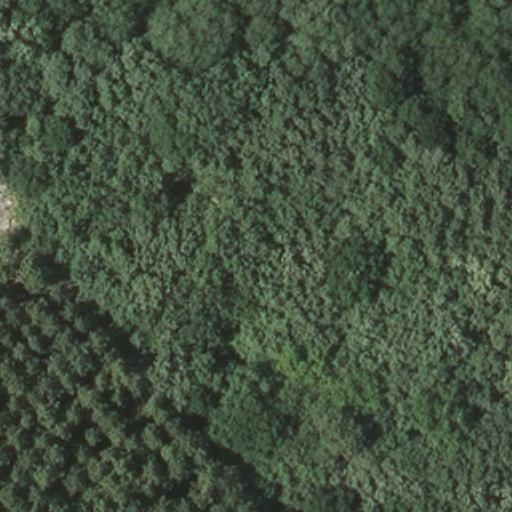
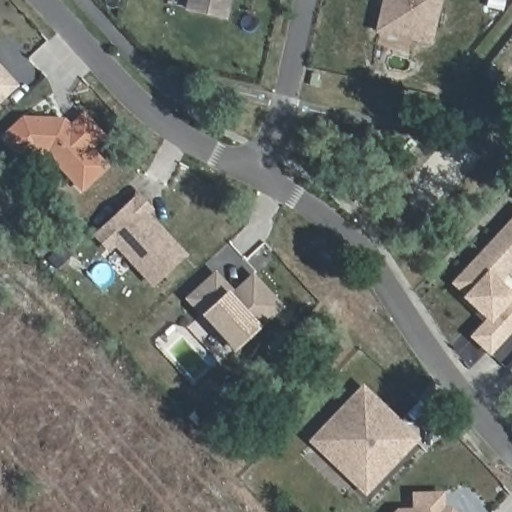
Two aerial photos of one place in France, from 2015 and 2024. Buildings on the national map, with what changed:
new [(227,19),(184,9),(186,0),(232,0),(227,19)]
new [(432,45),(374,33),(382,0),(441,0),(432,45)]
new [(0,103),(0,65),(18,86),(0,103)]
new [(80,194),(49,157),(33,155),(23,164),(1,137),(23,116),(64,117),(70,124),(84,112),(105,136),(91,148),(108,168),(80,194)]
new [(149,214),(186,256),(151,287),(115,247),(108,253),(93,235),(138,193),(153,210),(149,214)]
new [(512,279),(512,332),(489,356),(469,338),(485,321),(462,299),(464,296),(450,284),(512,218),(512,269),(507,274),(512,279)]
new [(234,353),(185,299),(215,271),(233,290),(252,272),(285,308),(234,353)]
new [(365,497),(307,443),(362,385),(418,439),(365,497)]
new [(411,508),(410,493),(445,492),(445,507),(452,507),(457,512),(394,512),(397,509),(411,508)]

